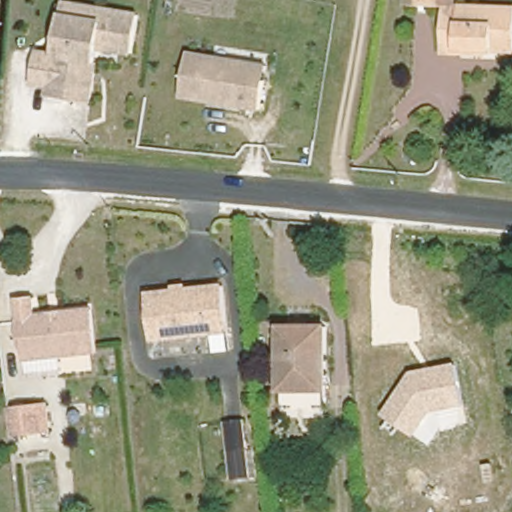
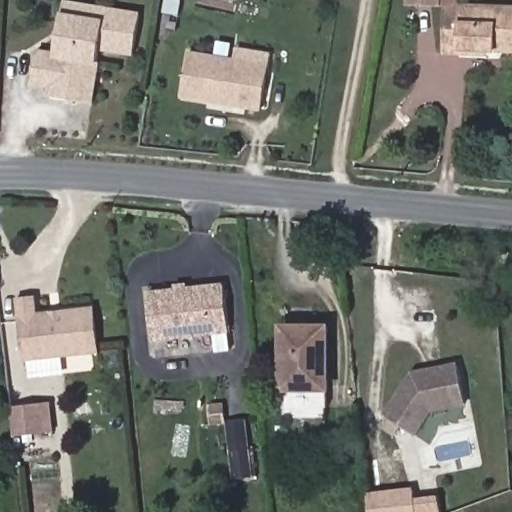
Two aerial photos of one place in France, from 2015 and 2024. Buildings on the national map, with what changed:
unchanged [(409,0),(462,0),(461,7),(446,7),(409,4),(409,0)]
unchanged [(445,55),(445,22),(446,22),(446,7),(461,7),(512,10),(512,53),(486,52),(486,56),(460,55),(445,55)]
unchanged [(59,8),(103,9),(103,10),(134,11),(132,49),(97,47),(97,53),(58,46),(59,18),(59,8)]
unchanged [(97,53),(96,103),(55,100),(55,89),(36,88),(37,56),(57,58),(58,46),(97,53)]
unchanged [(265,111),(182,100),(191,50),(270,63),(265,111)]
unchanged [(224,282),(227,328),(152,336),(148,289),(224,282)]
unchanged [(34,297),(36,313),(94,308),(98,353),(24,359),(16,297),(34,297)]
unchanged [(1,317),(3,329),(0,329),(0,318),(1,317)]
unchanged [(328,418),(280,418),(280,398),(280,335),(291,336),(328,337),(328,418)]
unchanged [(432,411),(417,436),(383,414),(412,370),(458,362),(467,406),(432,411)]
unchanged [(51,408),(55,438),(48,439),(17,443),(14,412),(44,409),(51,408)]
unchanged [(243,420),(250,477),(235,479),(227,422),(243,420)]
new [(413,487),(415,498),(439,495),(441,512),(368,512),(366,493),(413,487)]

